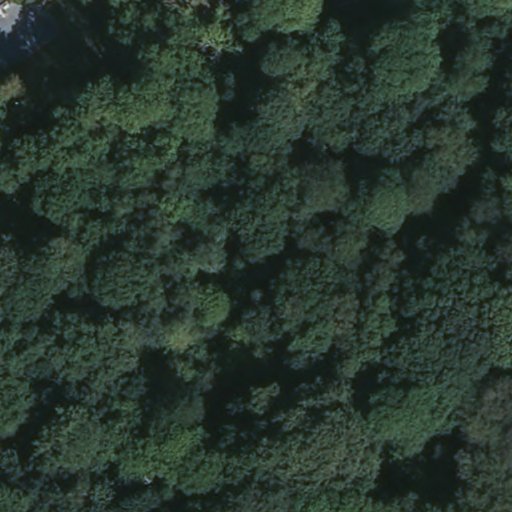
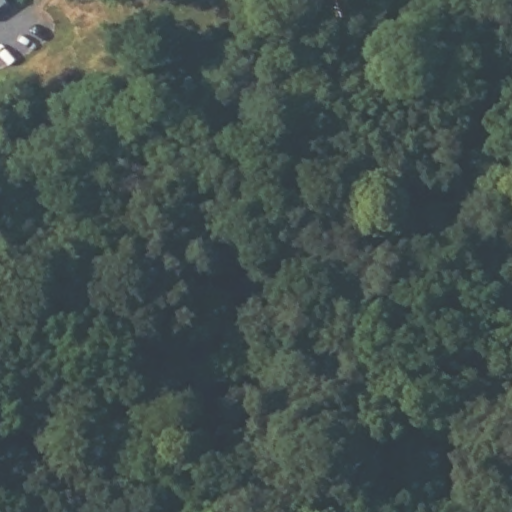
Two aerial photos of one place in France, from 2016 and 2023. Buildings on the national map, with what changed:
unchanged [(0,12),(0,0),(6,0),(10,5),(0,12)]

